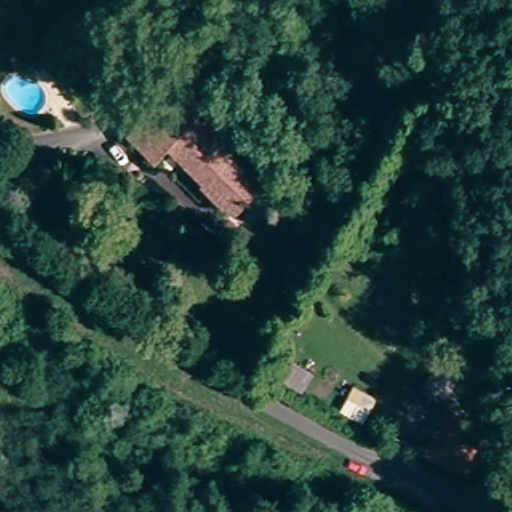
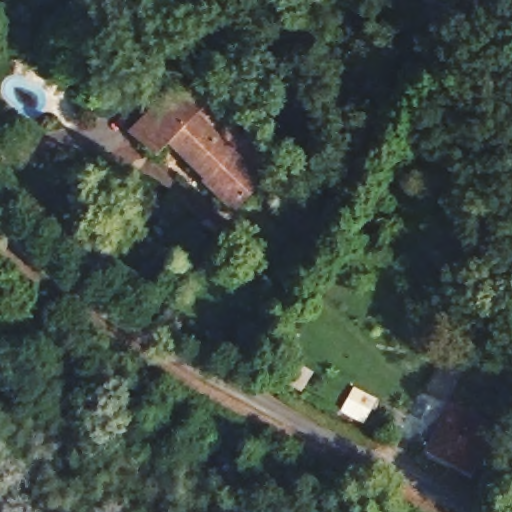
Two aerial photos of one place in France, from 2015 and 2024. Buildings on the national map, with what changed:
unchanged [(280,161),(237,209),(165,144),(154,155),(129,130),(178,79),(203,101),(209,94),(280,161)]
unchanged [(467,474),(427,454),(451,407),(490,428),(467,474)]

